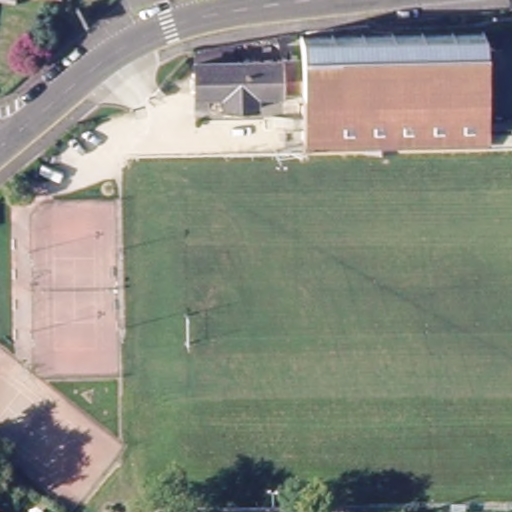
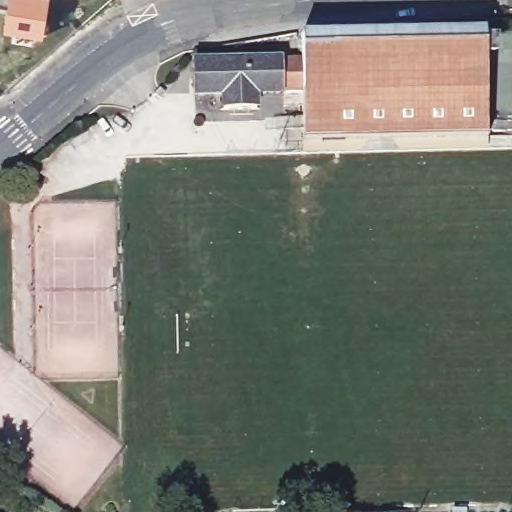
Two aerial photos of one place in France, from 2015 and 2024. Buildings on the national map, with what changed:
new [(7,0),(49,0),(43,36),(3,30),(7,0)]
demolished [(55,2),(38,0),(55,0),(55,2)]
unchanged [(304,56),(305,33),(484,30),(485,122),(484,131),(302,133),(303,90),(285,90),(284,56),(304,56)]
unchanged [(235,41),(233,57),(284,56),(285,90),(257,90),(258,106),(225,106),(224,90),(195,91),(195,46),(235,41)]
unchanged [(484,131),(484,145),(302,147),(302,133),(484,131)]

